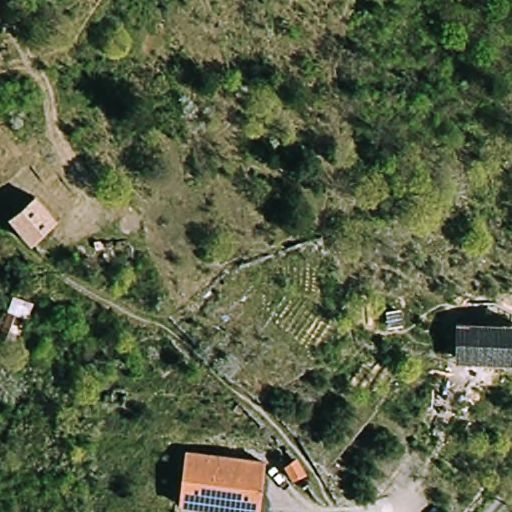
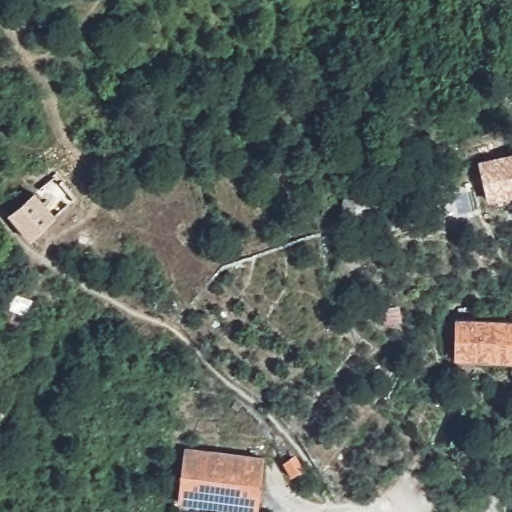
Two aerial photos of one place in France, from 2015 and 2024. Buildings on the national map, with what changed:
new [(477,164),(512,155),(512,216),(511,216),(507,200),(488,205),(477,164)]
unchanged [(39,235),(25,223),(14,214),(40,194),(44,198),(60,218),(39,235)]
unchanged [(457,322),(512,323),(512,361),(457,361),(457,322)]
unchanged [(107,390),(120,392),(116,414),(100,411),(107,390)]
unchanged [(252,510),(185,501),(190,451),(256,458),(252,510)]
unchanged [(291,455),(303,469),(289,481),(273,462),(289,451),(291,455)]

